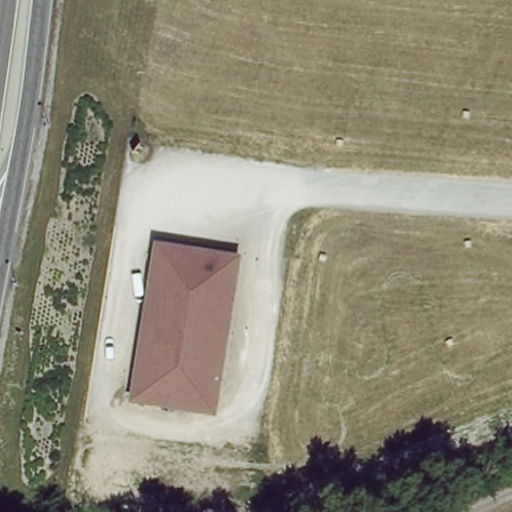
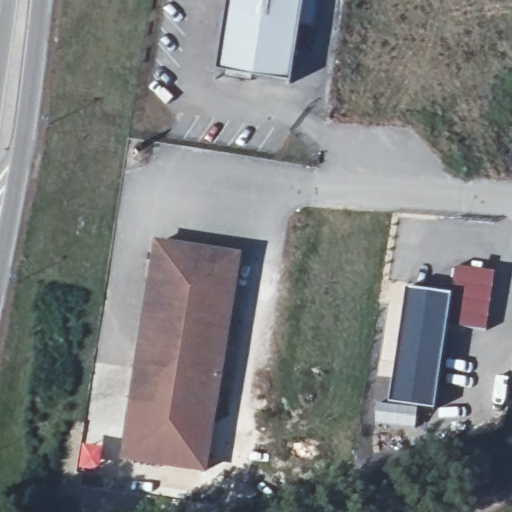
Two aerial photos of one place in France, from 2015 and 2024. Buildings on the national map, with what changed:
new [(299,25),(291,83),(252,78),(251,83),(223,79),(224,74),(215,72),(226,0),(318,0),(314,28),(299,25)]
unchanged [(216,411),(133,398),(156,238),(240,253),(216,411)]
new [(460,295),(462,271),(496,274),(492,329),(455,327),(447,416),(395,411),(410,290),(460,295)]
new [(216,411),(210,475),(123,463),(133,398),(216,411)]

